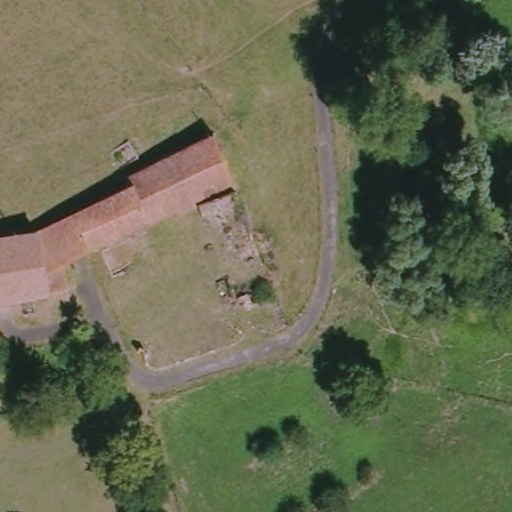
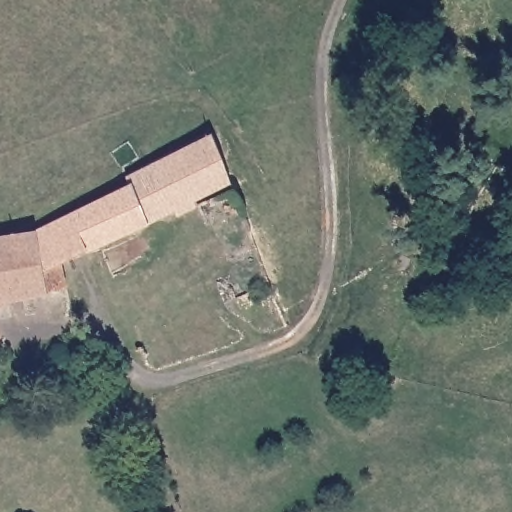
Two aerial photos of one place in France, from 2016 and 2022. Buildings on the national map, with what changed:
unchanged [(43,291),(29,293),(0,300),(0,233),(30,226),(128,182),(125,172),(210,132),(229,187),(192,202),(64,254),(66,263),(61,266),(64,287),(44,290),(43,291)]
unchanged [(1,331),(0,331),(0,329),(1,331)]

